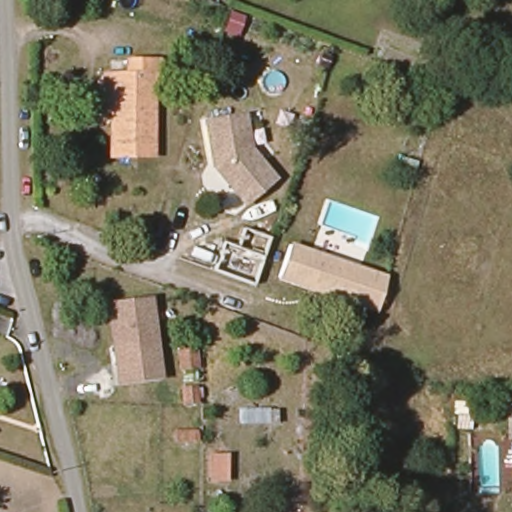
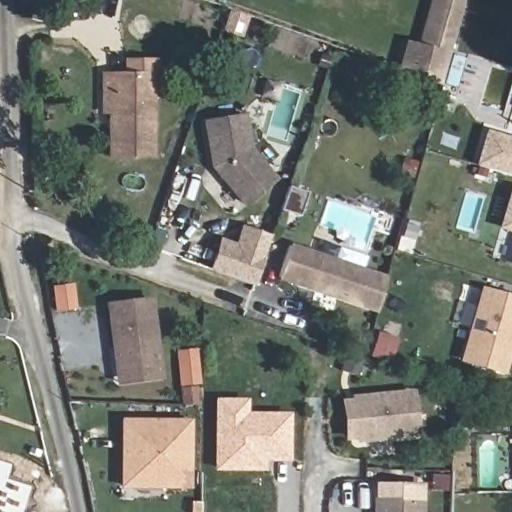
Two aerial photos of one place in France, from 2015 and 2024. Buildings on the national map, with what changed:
new [(429,0),(461,0),(446,51),(417,43),(429,0)]
new [(406,40),(417,43),(446,51),(438,81),(398,66),(406,40)]
unchanged [(114,123),(126,121),(125,110),(111,111),(110,71),(128,71),(127,57),(157,56),(157,74),(150,75),(153,155),(114,156),(114,123)]
unchanged [(242,207),(209,168),(202,118),(243,112),(250,145),(276,178),(242,207)]
new [(473,163),(483,130),(512,139),(512,174),(473,163)]
new [(497,224),(508,186),(512,188),(512,228),(497,224)]
new [(256,283),(210,267),(220,236),(240,242),(245,229),(273,236),(256,283)]
unchanged [(377,311),(278,279),(290,240),(387,272),(377,311)]
new [(511,261),(512,258),(512,261),(511,261)]
new [(499,369),(459,357),(479,287),(512,297),(512,324),(499,369)]
unchanged [(116,384),(105,301),(151,295),(161,379),(116,384)]
unchanged [(199,372),(179,372),(177,352),(198,349),(199,372)]
new [(357,442),(353,395),(416,389),(422,436),(357,442)]
new [(213,398),(248,398),(248,411),(291,412),(290,461),(266,461),(266,472),(212,470),(213,398)]
new [(117,443),(118,437),(118,417),(183,417),(183,482),(161,482),(161,495),(117,495),(117,479),(117,443)]
new [(9,478),(32,485),(24,512),(0,512),(0,460),(13,463),(9,478)]
new [(426,498),(425,512),(373,512),(373,497),(426,498)]

